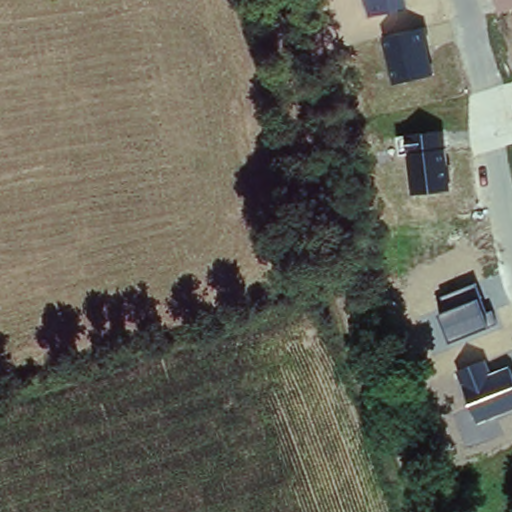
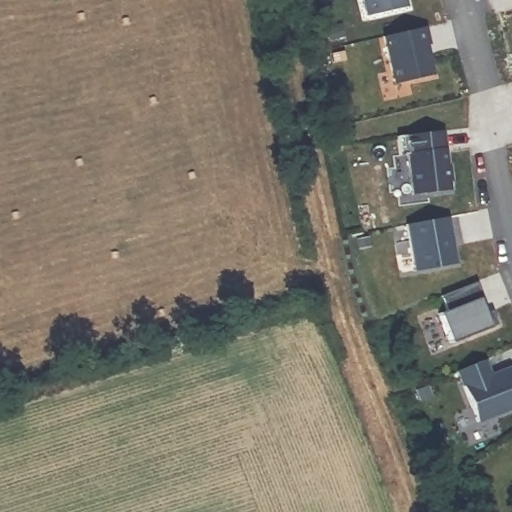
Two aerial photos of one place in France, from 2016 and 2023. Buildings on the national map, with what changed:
unchanged [(406,0),(408,8),(366,17),(362,0),(406,0)]
unchanged [(383,38),(426,27),(430,45),(426,46),(433,75),(394,85),(383,38)]
unchanged [(409,154),(399,155),(397,136),(444,130),(452,190),(414,195),(409,154)]
new [(458,263),(414,272),(406,226),(449,217),(458,263)]
unchanged [(439,316),(448,313),(443,297),(476,284),(488,314),(494,311),(499,325),(491,328),(452,344),(439,316)]
unchanged [(488,362),(492,374),(512,367),(512,409),(477,424),(459,373),(488,362)]

